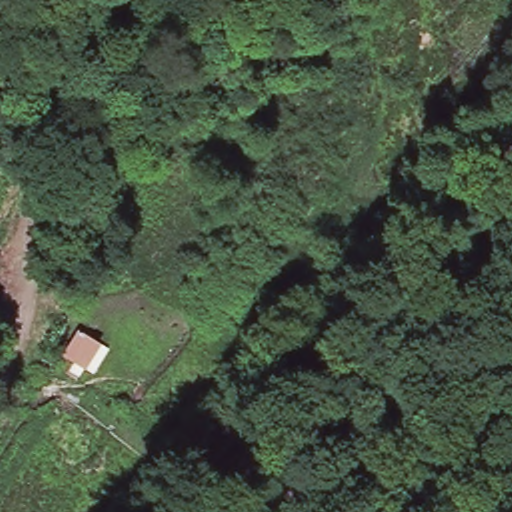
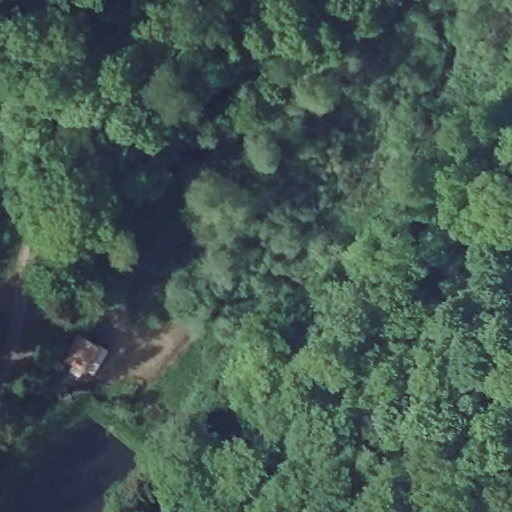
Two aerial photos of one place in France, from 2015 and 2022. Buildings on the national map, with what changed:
unchanged [(77,335),(93,347),(78,367),(72,363),(68,368),(58,359),(77,335)]

